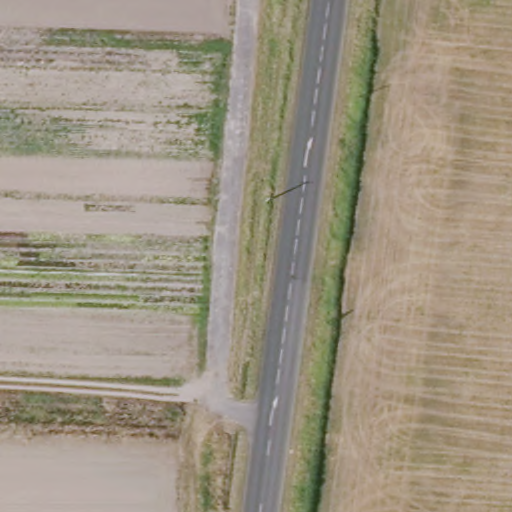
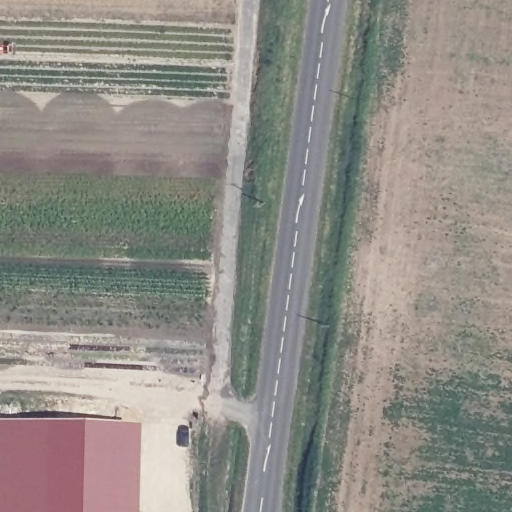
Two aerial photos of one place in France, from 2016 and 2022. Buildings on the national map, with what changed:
new [(141,424),(138,512),(0,512),(0,420),(141,424)]

